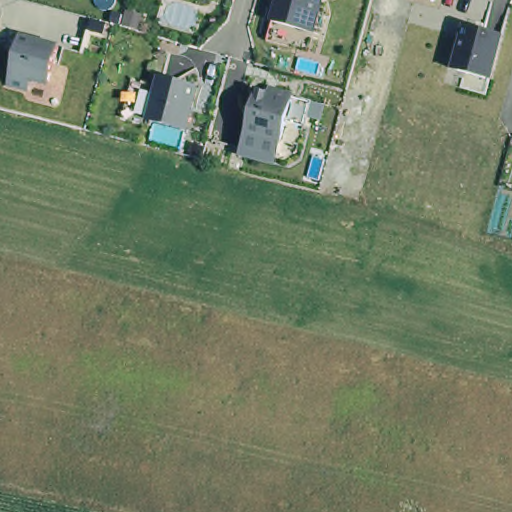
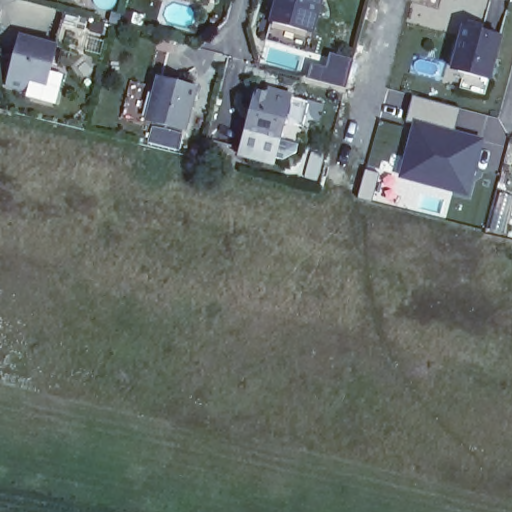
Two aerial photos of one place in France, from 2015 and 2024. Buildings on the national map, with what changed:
unchanged [(314,33),(273,21),(279,0),(322,0),(322,4),(314,33)]
unchanged [(505,36),(492,79),(457,69),(469,26),(505,36)]
unchanged [(58,46),(48,84),(30,79),(27,89),(7,84),(21,35),(58,46)]
new [(311,60),(325,64),(329,51),(352,58),(345,89),(306,78),(311,60)]
unchanged [(199,90),(187,134),(150,124),(162,80),(199,90)]
unchanged [(291,99),(279,144),(244,134),(255,94),(273,99),(274,95),(291,99)]
new [(412,94),(460,108),(454,129),(412,119),(406,118),(412,94)]
new [(412,119),(454,129),(484,138),(469,197),(397,177),(412,119)]

